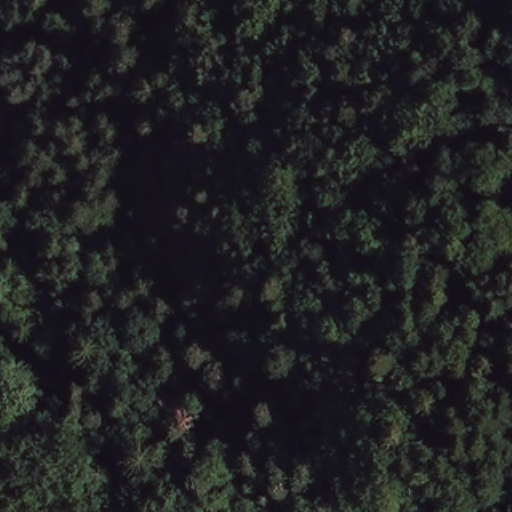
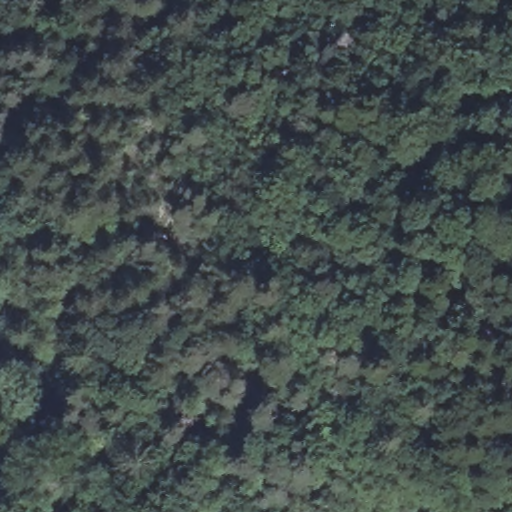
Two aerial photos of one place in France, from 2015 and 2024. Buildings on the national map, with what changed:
[]

